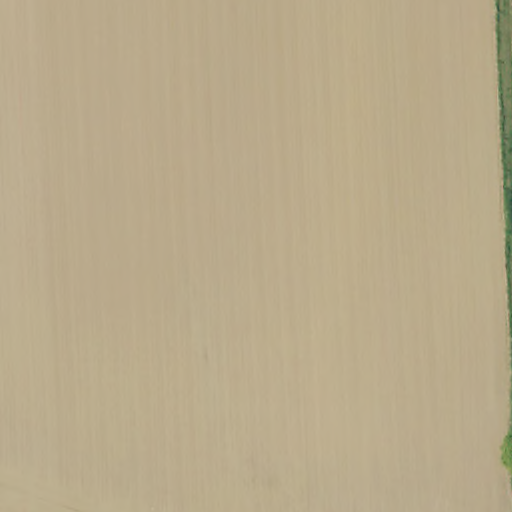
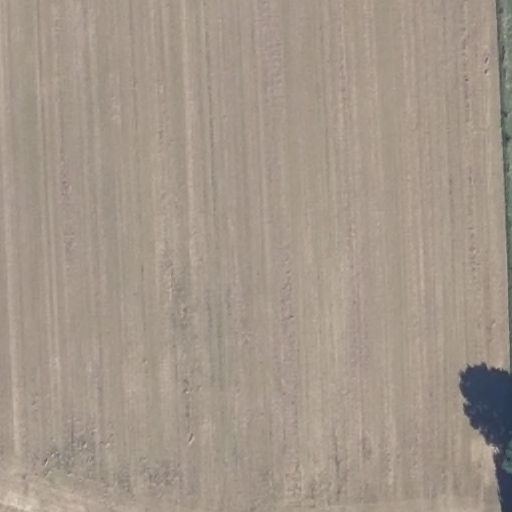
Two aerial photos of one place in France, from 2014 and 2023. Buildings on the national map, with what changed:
[]

